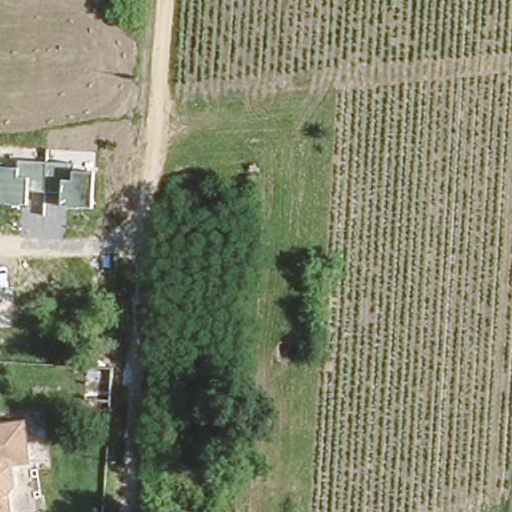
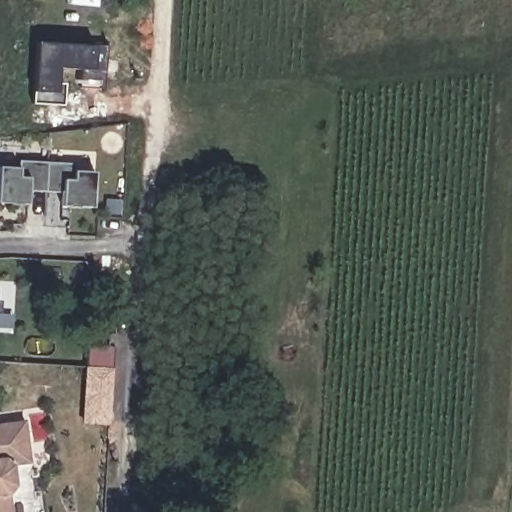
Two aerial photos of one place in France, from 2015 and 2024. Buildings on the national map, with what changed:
new [(78,69),(60,68),(59,84),(65,84),(62,105),(33,103),(34,91),(37,44),(95,46),(105,45),(102,89),(80,87),(78,69)]
unchanged [(61,207),(64,193),(30,193),(30,205),(0,203),(0,166),(21,167),(21,161),(77,164),(77,171),(97,171),(95,208),(61,207)]
unchanged [(1,312),(0,312),(0,300),(1,300),(1,312)]
new [(110,426),(83,424),(86,367),(89,345),(115,347),(114,368),(110,426)]
unchanged [(25,467),(4,470),(5,512),(0,512),(0,422),(19,420),(25,467)]

